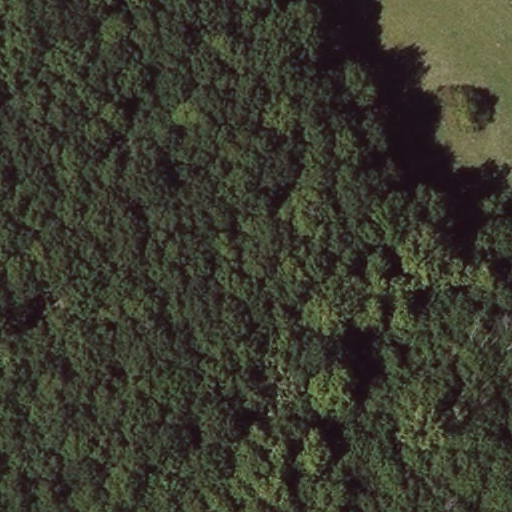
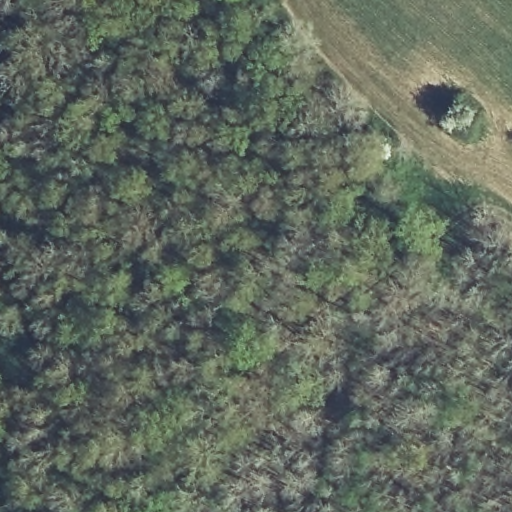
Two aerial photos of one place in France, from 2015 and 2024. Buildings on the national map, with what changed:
[]

